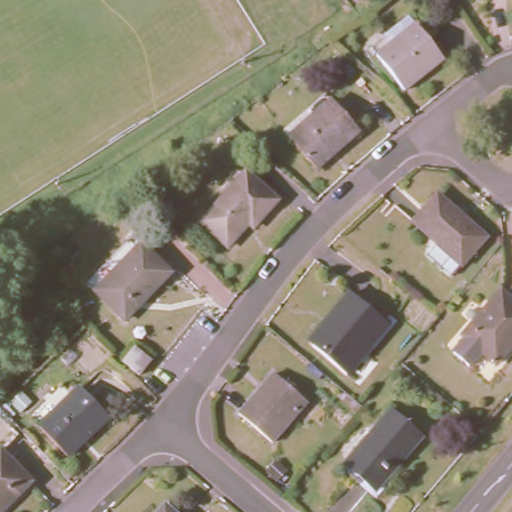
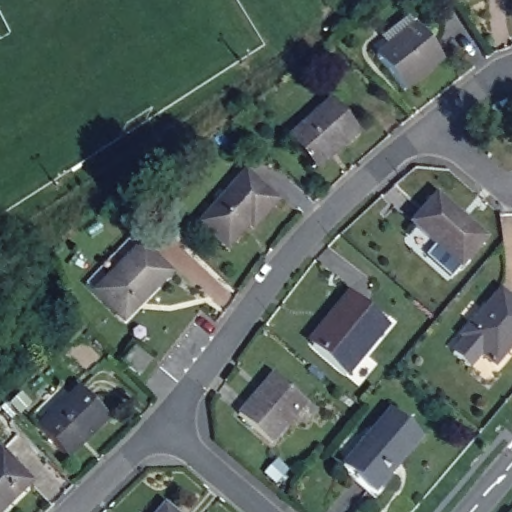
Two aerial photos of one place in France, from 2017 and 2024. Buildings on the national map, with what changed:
unchanged [(374,51),(413,19),(441,55),(403,86),(374,51)]
unchanged [(286,134),(331,96),(357,126),(314,164),(286,134)]
unchanged [(198,223),(245,173),(274,201),(250,228),(243,222),(239,226),(242,230),(224,249),(198,223)]
unchanged [(436,196),(484,238),(459,266),(412,224),(436,196)]
unchanged [(173,274),(126,322),(98,293),(88,285),(131,241),(140,250),(143,246),(173,274)]
unchanged [(504,291),(512,297),(512,350),(499,366),(466,336),(504,291)]
unchanged [(386,324),(344,375),(311,347),(306,343),(326,319),(348,293),(386,324)]
unchanged [(149,362),(138,376),(121,364),(133,349),(149,362)]
unchanged [(304,403),(270,443),(236,414),(256,391),(259,393),(274,376),(304,403)]
unchanged [(78,389),(106,417),(65,457),(38,428),(78,389)]
unchanged [(389,411),(419,438),(374,492),(342,465),(389,411)]
unchanged [(0,512),(0,451),(30,482),(0,512)]
unchanged [(171,512),(157,512),(163,505),(171,512)]

